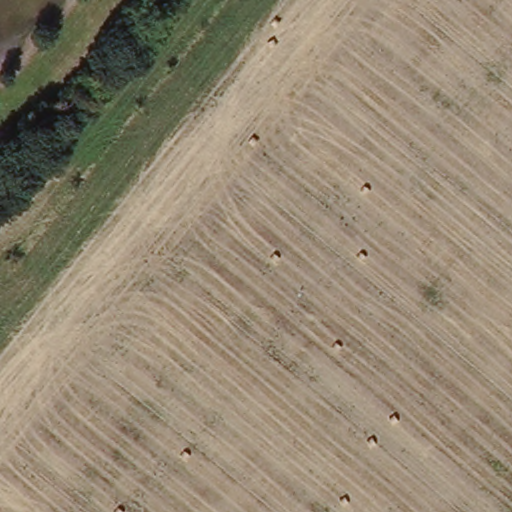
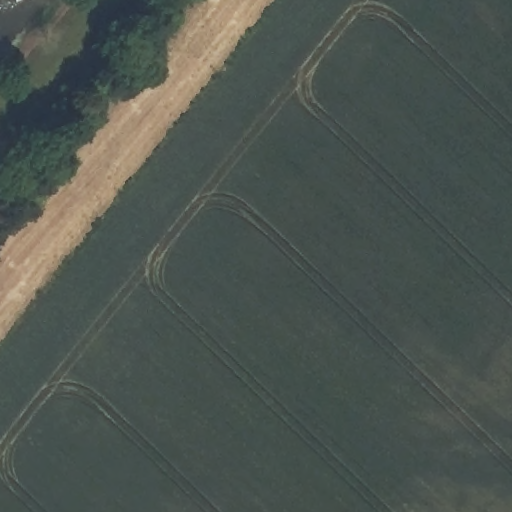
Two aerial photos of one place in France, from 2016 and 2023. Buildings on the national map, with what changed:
[]

